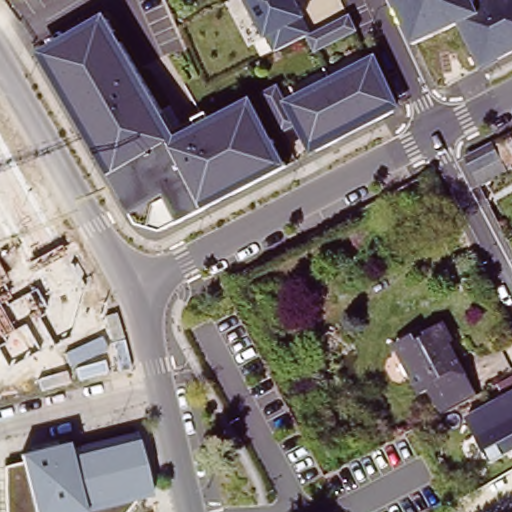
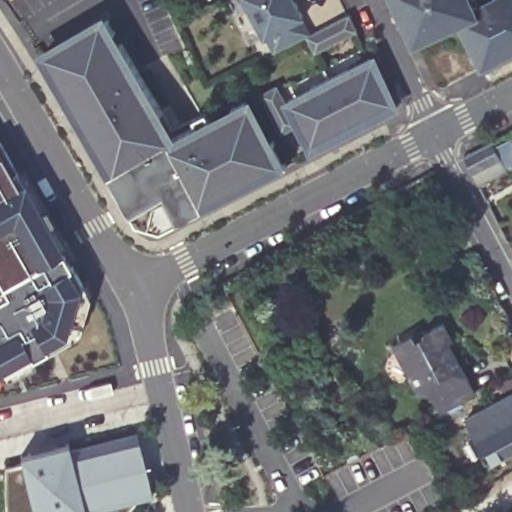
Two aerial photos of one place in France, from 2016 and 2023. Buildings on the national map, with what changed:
unchanged [(345,13),(355,30),(309,54),(300,37),(269,51),(245,0),(294,0),(308,30),(345,13)]
unchanged [(463,40),(454,24),(447,26),(408,44),(400,25),(392,9),(389,0),(470,0),(472,6),(484,0),(512,0),(512,49),(477,68),(463,40)]
unchanged [(286,165),(178,225),(160,235),(140,227),(129,219),(35,52),(101,14),(175,138),(250,95),(286,165)]
unchanged [(400,104),(310,150),(297,129),(283,136),(262,100),(280,87),(288,100),(372,55),(400,104)]
new [(78,264),(92,288),(75,339),(58,348),(53,340),(42,346),(45,352),(11,371),(0,351),(0,298),(11,292),(0,273),(0,133),(75,265),(78,264)]
unchanged [(507,134),(512,143),(512,160),(505,164),(510,174),(479,190),(463,156),(507,134)]
unchanged [(426,395),(416,378),(421,367),(415,356),(403,352),(400,345),(406,340),(419,334),(423,342),(432,337),(430,334),(450,323),(460,342),(450,347),(454,354),(459,355),(481,396),(446,415),(434,391),(426,395)]
new [(0,378),(0,351),(11,371),(0,378)]
unchanged [(487,468),(463,426),(504,403),(497,390),(512,383),(512,454),(487,468)]
unchanged [(22,467),(18,455),(68,441),(72,455),(136,436),(151,497),(133,501),(126,512),(4,512),(2,472),(22,467)]

